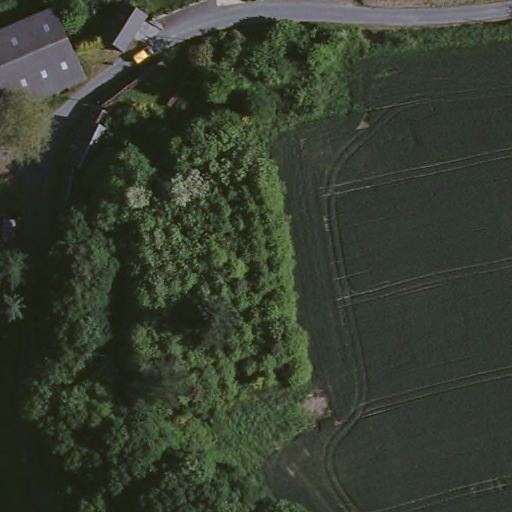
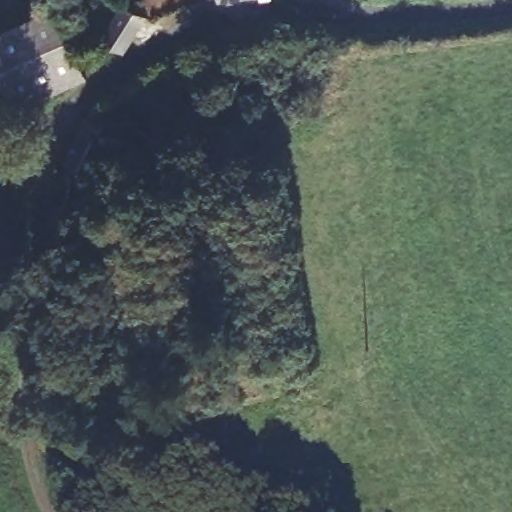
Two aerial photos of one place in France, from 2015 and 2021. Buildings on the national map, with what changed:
unchanged [(59,0),(76,37),(90,69),(76,76),(30,97),(14,105),(11,102),(0,107),(0,28),(59,0)]
unchanged [(131,0),(132,0),(152,14),(127,47),(108,33),(131,0)]
unchanged [(95,117),(103,101),(117,109),(110,122),(120,130),(98,172),(87,165),(71,155),(90,116),(95,117)]
unchanged [(87,165),(79,233),(61,231),(71,155),(87,165)]
unchanged [(19,221),(17,240),(4,240),(6,221),(19,221)]
unchanged [(70,268),(66,300),(50,298),(53,266),(70,268)]

